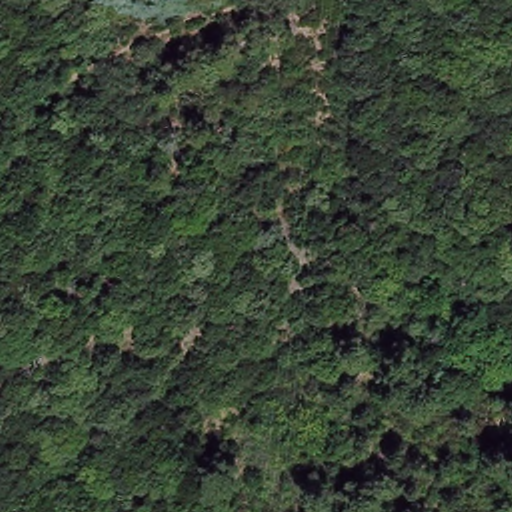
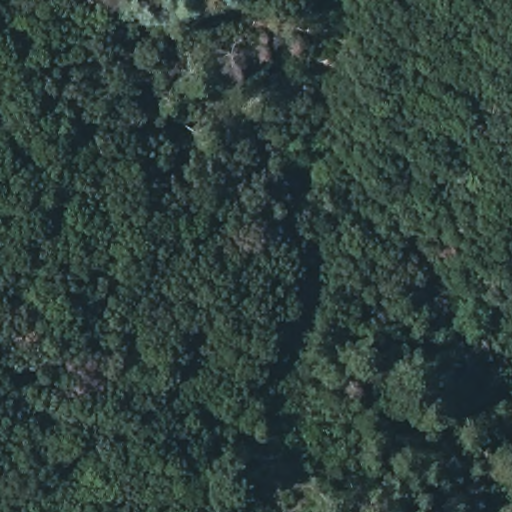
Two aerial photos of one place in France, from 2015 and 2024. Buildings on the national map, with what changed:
[]

